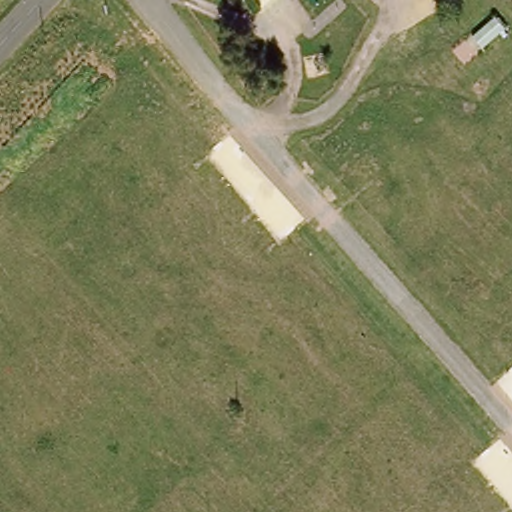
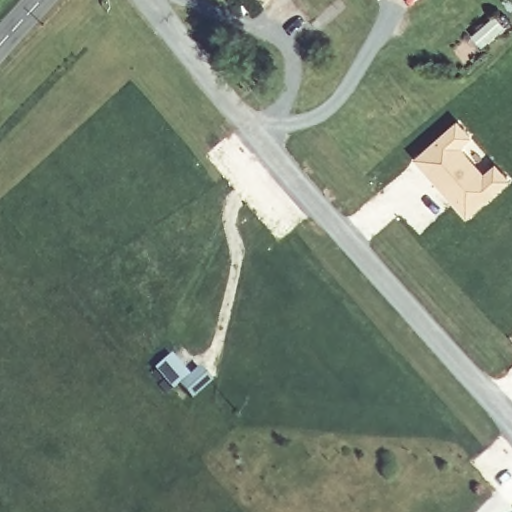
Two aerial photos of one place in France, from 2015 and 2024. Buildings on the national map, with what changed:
new [(473,138),(460,149),(486,175),(497,166),(510,181),(466,215),(417,160),(459,122),(473,138)]
new [(173,357),(192,377),(175,395),(155,368),(173,357)]

